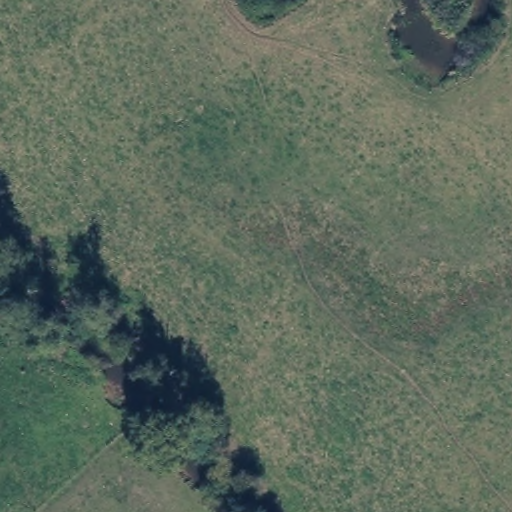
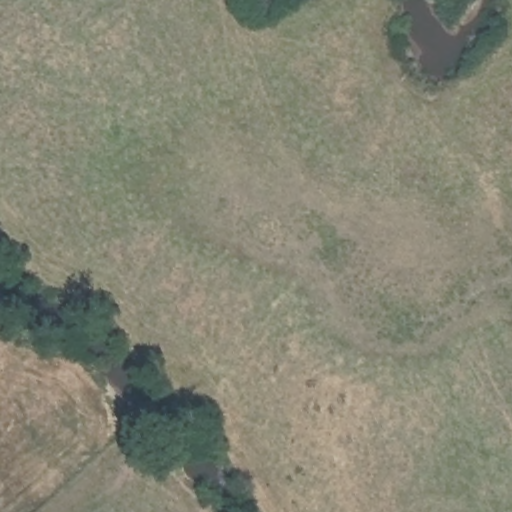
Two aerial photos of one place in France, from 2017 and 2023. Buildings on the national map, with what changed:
unchanged [(206,385),(190,402),(170,386),(187,367),(206,385)]

